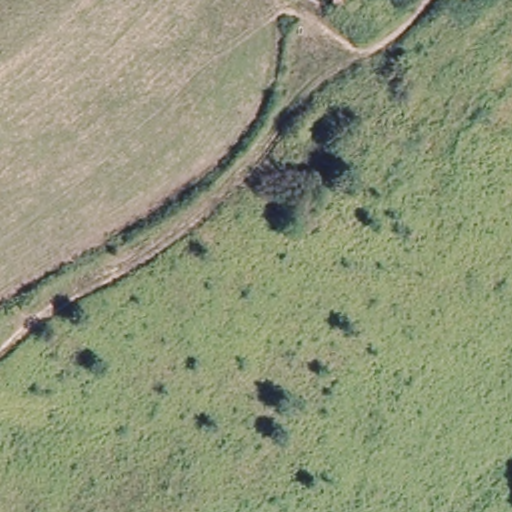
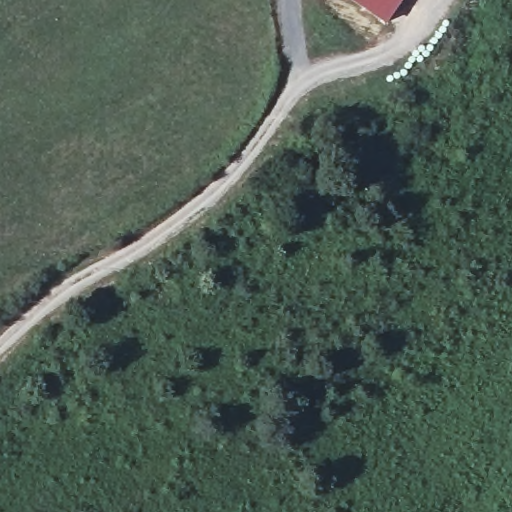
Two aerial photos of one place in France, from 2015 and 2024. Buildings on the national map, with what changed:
demolished [(379,0),(378,5),(350,0),(379,0)]
new [(353,0),(403,0),(387,24),(353,0)]

